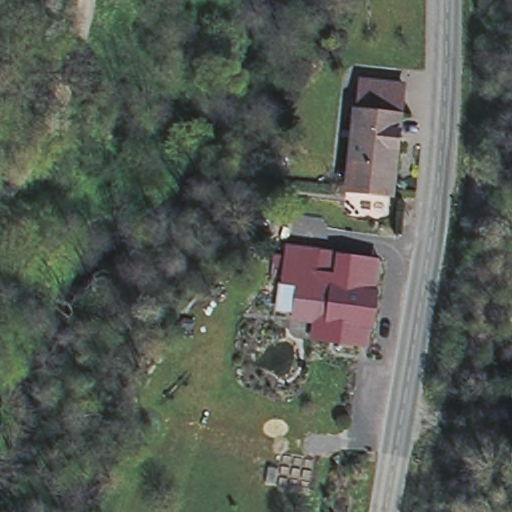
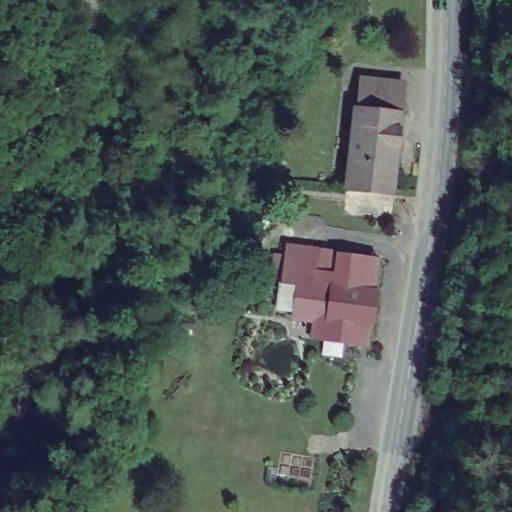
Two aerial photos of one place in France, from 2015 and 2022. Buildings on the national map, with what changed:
unchanged [(365,86),(367,75),(408,80),(404,107),(361,101),(365,86)]
unchanged [(359,101),(361,101),(404,107),(397,160),(396,160),(352,154),(359,101)]
unchanged [(350,176),(352,154),(396,160),(391,188),(367,185),(349,182),(350,176)]
unchanged [(311,318),(292,315),(297,280),(281,277),(286,246),(372,259),(380,260),(382,261),(368,346),(359,345),(307,337),(311,318)]

